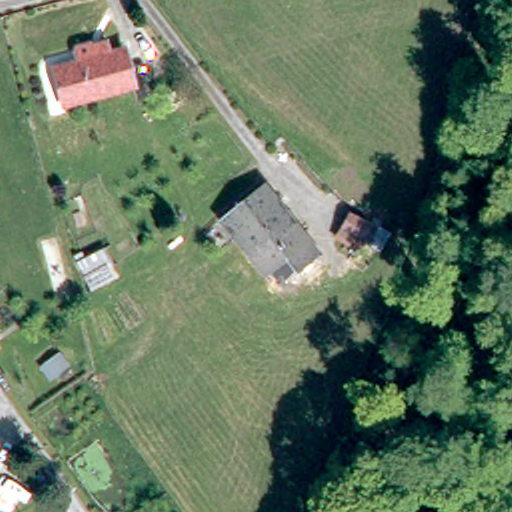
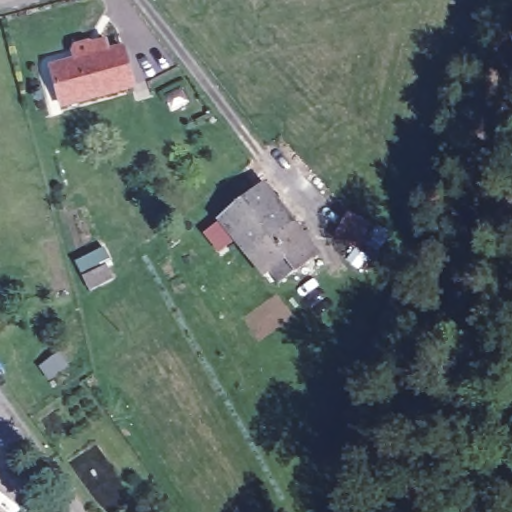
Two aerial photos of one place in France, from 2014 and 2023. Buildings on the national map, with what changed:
unchanged [(63,107),(53,69),(77,63),(74,52),(75,48),(90,43),(95,46),(107,42),(112,54),(125,50),(135,87),(63,107)]
unchanged [(247,255),(218,219),(266,182),(293,220),(247,255)]
unchanged [(358,221),(345,242),(322,231),(337,209),(358,221)]
unchanged [(306,273),(300,265),(292,270),(285,260),(262,275),(247,255),(293,220),(316,252),(322,260),(306,273)]
unchanged [(100,258),(74,276),(66,265),(92,247),(100,258)]
unchanged [(46,371),(37,358),(52,348),(61,360),(46,371)]

